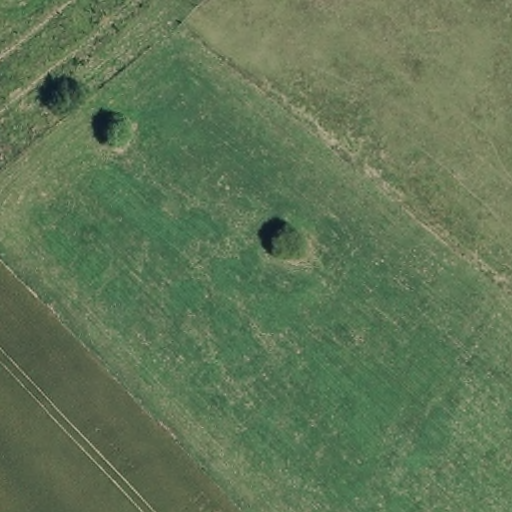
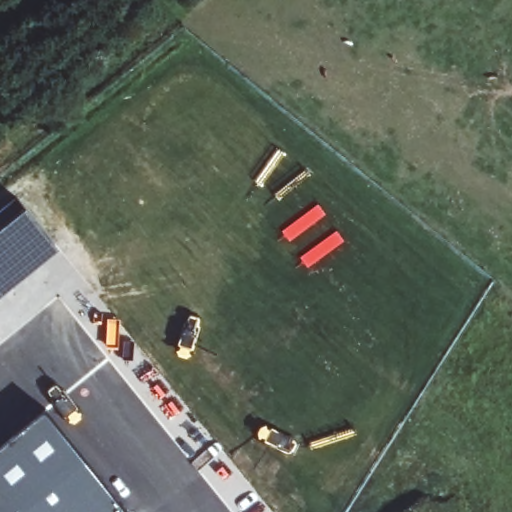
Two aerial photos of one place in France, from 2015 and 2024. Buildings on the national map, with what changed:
new [(16,197),(59,250),(0,297),(0,209),(16,197)]
new [(48,410),(128,512),(0,512),(0,449),(48,410)]

